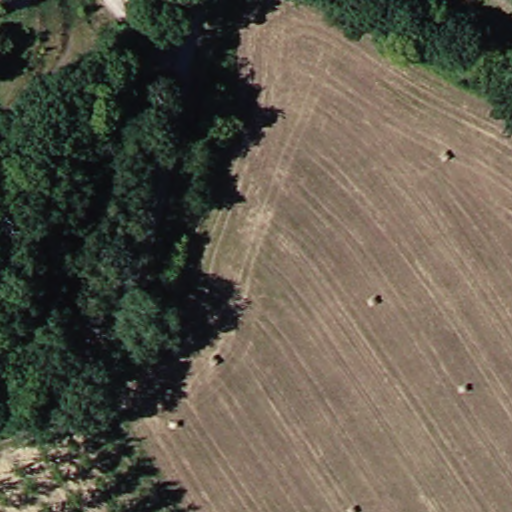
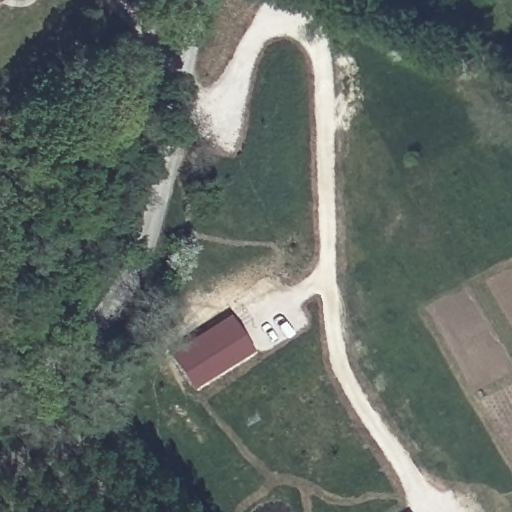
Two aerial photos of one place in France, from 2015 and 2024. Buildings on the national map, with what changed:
new [(169,355),(230,315),(252,351),(192,388),(169,355)]

